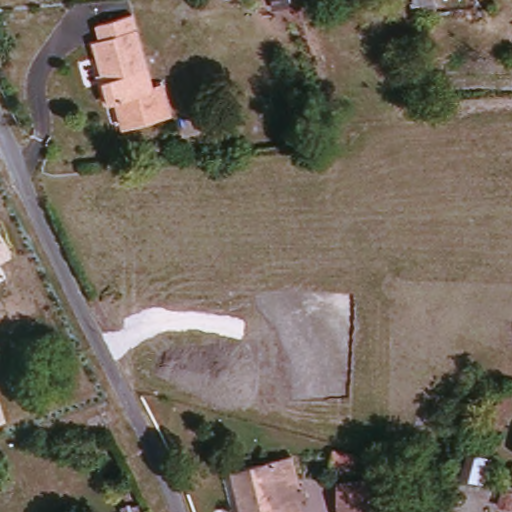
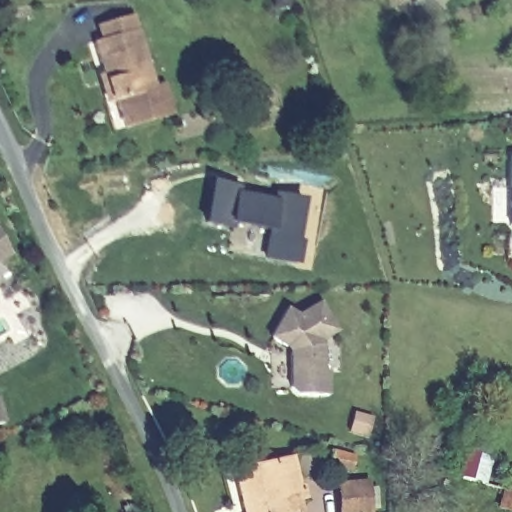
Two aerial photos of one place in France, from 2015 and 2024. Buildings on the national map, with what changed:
unchanged [(272,1),(272,0),(282,0),(272,1)]
unchanged [(97,81),(105,78),(95,41),(105,37),(100,23),(134,14),(154,89),(163,87),(171,115),(123,127),(117,102),(111,103),(102,104),(97,81)]
new [(512,157),(512,227),(510,227),(510,156),(512,157)]
new [(300,241),(302,242),(298,266),(261,259),(266,230),(236,225),(235,232),(202,225),(210,182),(306,199),(300,241)]
unchanged [(11,255),(0,262),(0,238),(11,255)]
new [(340,331),(325,340),(325,373),(331,372),(331,394),(296,394),(288,386),(270,387),(270,355),(289,354),(285,347),(268,338),(285,308),(297,314),(320,300),(340,331)]
new [(4,424),(0,426),(0,410),(4,424)]
unchanged [(301,458),(307,492),(301,492),(305,512),(247,512),(240,467),(301,458)]
demolished [(389,466),(391,503),(360,504),(359,467),(389,466)]
new [(376,476),(377,512),(339,512),(338,478),(376,476)]
unchanged [(512,493),(512,498),(510,498),(512,493)]

